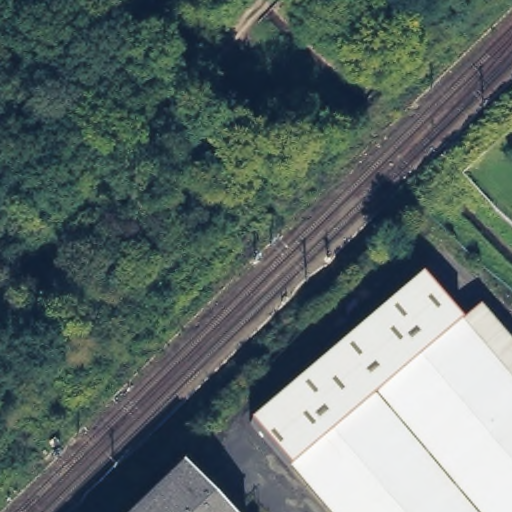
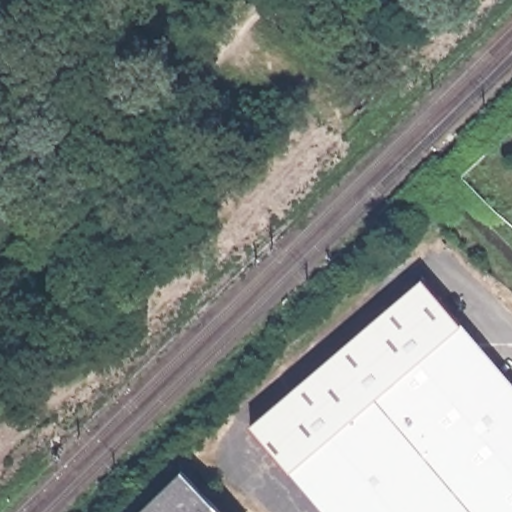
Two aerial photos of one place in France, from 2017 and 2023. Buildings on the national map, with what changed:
unchanged [(297,481),(247,424),(417,274),(467,333),(512,386),(512,512),(324,512),(297,481)]
unchanged [(181,469),(223,512),(137,512),(181,469)]

